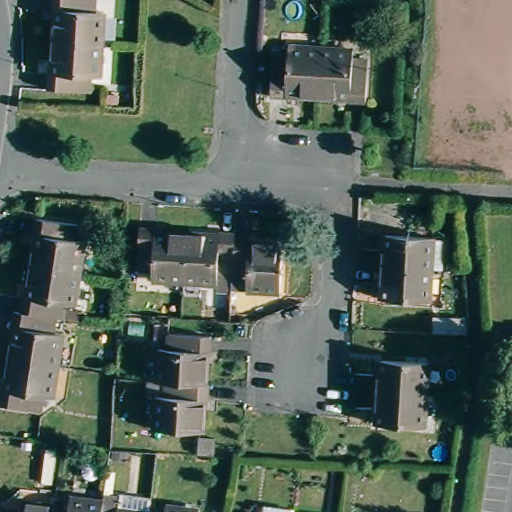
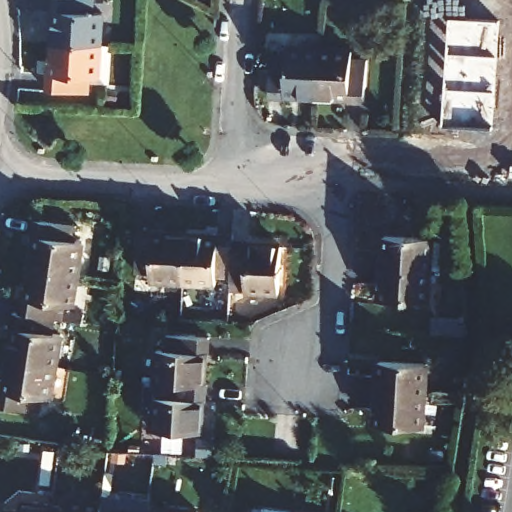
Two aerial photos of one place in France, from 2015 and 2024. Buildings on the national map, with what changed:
unchanged [(53,7),(54,0),(98,0),(96,6),(106,6),(104,39),(56,37),(58,7),(53,7)]
new [(450,16),(499,19),(492,127),(444,125),(450,16)]
unchanged [(289,82),(288,85),(271,83),(274,42),(289,42),(289,34),(326,36),(324,79),(324,83),(289,82)]
unchanged [(354,38),(354,47),(371,48),(369,91),(354,89),(354,85),(324,83),(324,79),(326,36),(354,38)]
unchanged [(104,39),(103,71),(94,70),(93,87),(50,85),(51,67),(55,67),(56,37),(104,39)]
unchanged [(43,220),(38,219),(43,203),(84,208),(81,224),(89,226),(84,258),(81,258),(38,251),(43,220)]
unchanged [(162,275),(163,267),(146,266),(149,223),(165,224),(164,228),(198,230),(195,277),(162,275)]
unchanged [(226,272),(226,280),(195,277),(198,230),(227,233),(228,229),(245,230),(245,233),(245,234),(243,272),(226,272)]
unchanged [(260,235),(260,238),(291,241),(286,289),(256,286),(257,277),(243,276),(243,272),(245,234),(260,235)]
unchanged [(378,301),(381,267),(384,236),(430,238),(429,240),(443,241),(442,271),(428,270),(424,304),(378,301)]
unchanged [(81,258),(84,258),(78,289),(70,288),(68,303),(60,302),(26,297),(28,282),(31,283),(38,251),(81,258)]
unchanged [(19,313),(14,312),(18,296),(26,297),(60,302),(58,318),(66,319),(61,351),(13,343),(19,313)]
unchanged [(208,402),(204,401),(201,430),(154,427),(157,397),(148,397),(148,380),(158,380),(161,350),(169,350),(171,333),(213,336),(213,352),(208,352),(206,383),(209,383),(208,402)]
unchanged [(61,351),(55,382),(48,381),(45,397),(3,390),(5,374),(8,374),(13,343),(61,351)]
unchanged [(381,362),(427,365),(424,395),(379,393),(381,362)]
unchanged [(422,429),(377,427),(379,393),(424,395),(422,429)]
unchanged [(59,506),(59,504),(72,506),(73,498),(108,502),(109,498),(124,500),(123,511),(126,512),(58,512),(59,506)]
unchanged [(7,507),(21,509),(23,501),(59,506),(58,512),(6,512),(7,507)]
unchanged [(168,507),(201,511),(201,512),(168,512),(168,507)]

